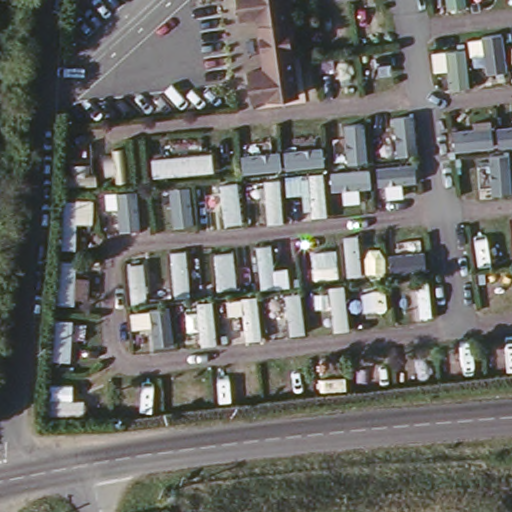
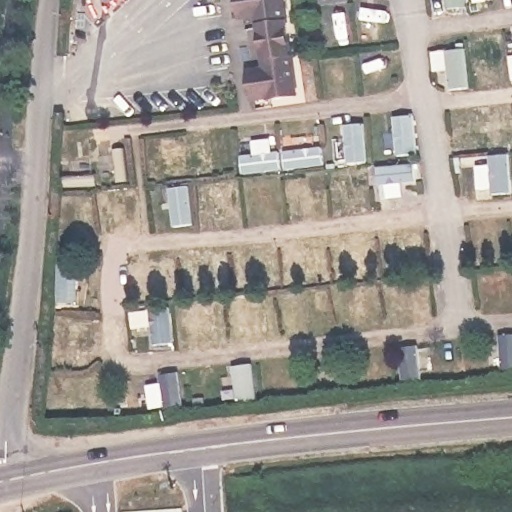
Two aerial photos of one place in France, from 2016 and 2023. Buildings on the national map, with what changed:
unchanged [(297,94),(267,99),(267,93),(249,95),(246,69),(264,67),(257,12),(241,14),(239,0),(287,0),(297,94)]

